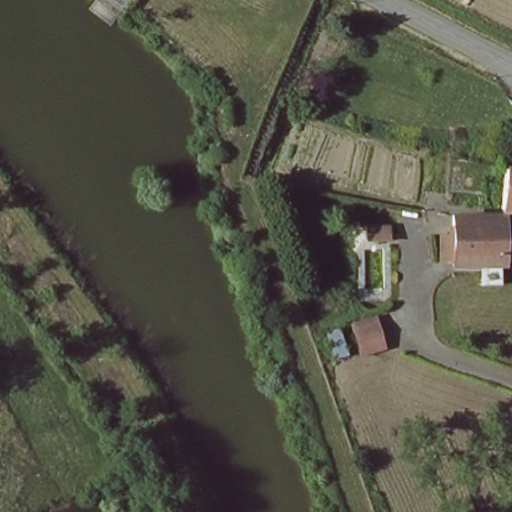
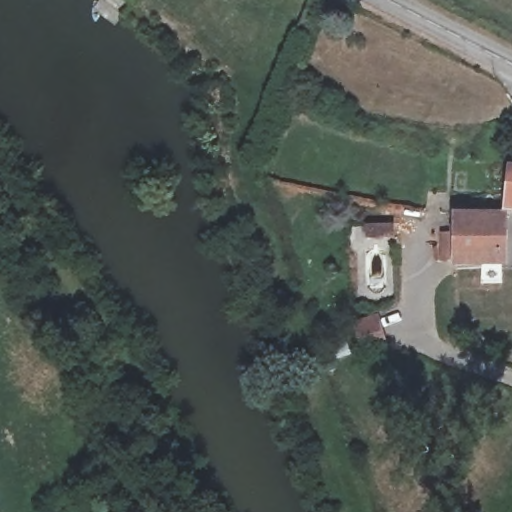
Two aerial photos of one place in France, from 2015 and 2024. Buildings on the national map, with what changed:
unchanged [(512,167),(512,203),(507,203),(507,198),(507,166),(512,167)]
unchanged [(507,209),(508,261),(450,261),(451,210),(507,209)]

